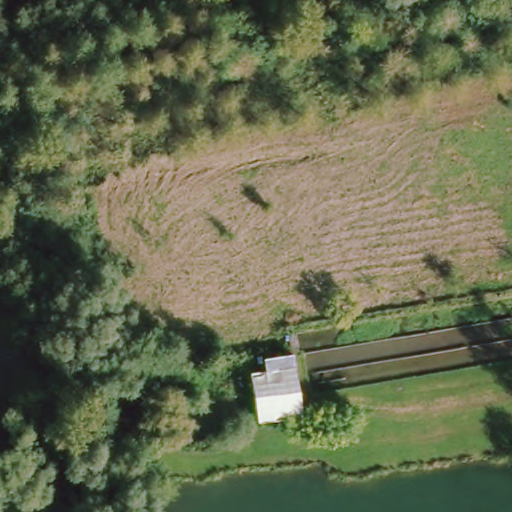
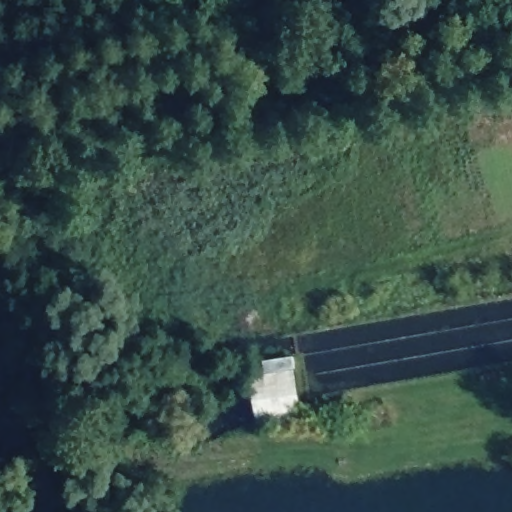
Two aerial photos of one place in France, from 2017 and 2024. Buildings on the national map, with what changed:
unchanged [(250,376),(266,374),(265,361),(293,357),(301,420),(258,425),(250,376)]

